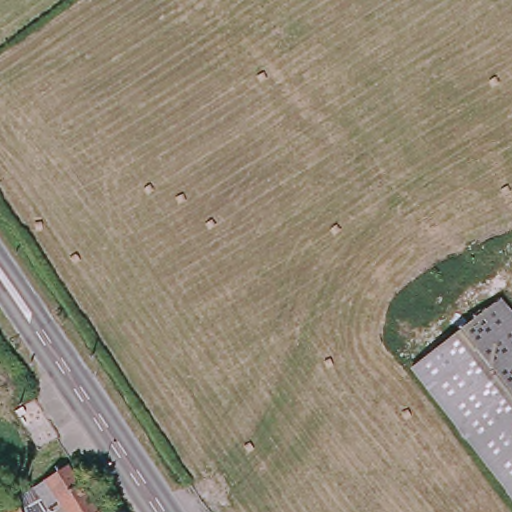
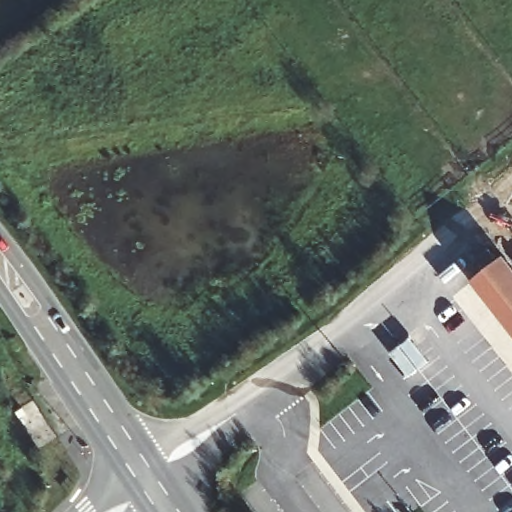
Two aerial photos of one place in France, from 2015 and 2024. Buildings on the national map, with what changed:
new [(512,274),(512,323),(479,279),(502,261),(512,274)]
demolished [(512,315),(512,500),(411,366),(499,298),(512,315)]
demolished [(16,489),(30,485),(67,461),(100,512),(52,512),(48,507),(40,512),(0,512),(0,498),(16,489)]

